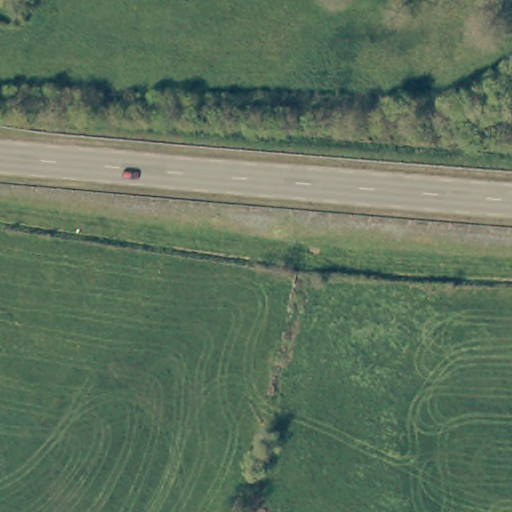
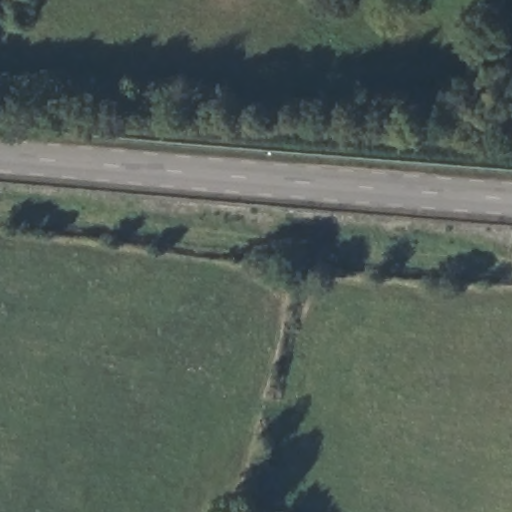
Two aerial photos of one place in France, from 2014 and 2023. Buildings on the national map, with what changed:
[]

